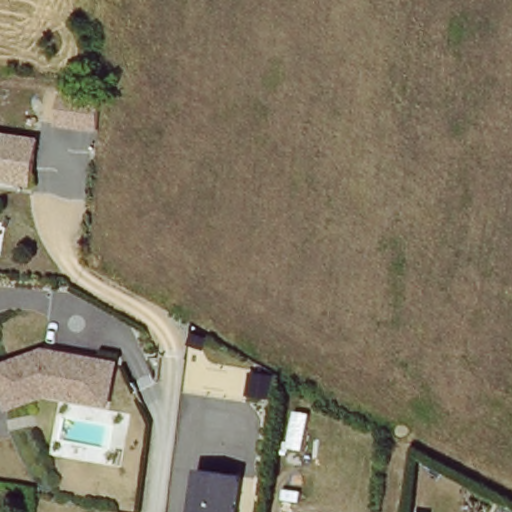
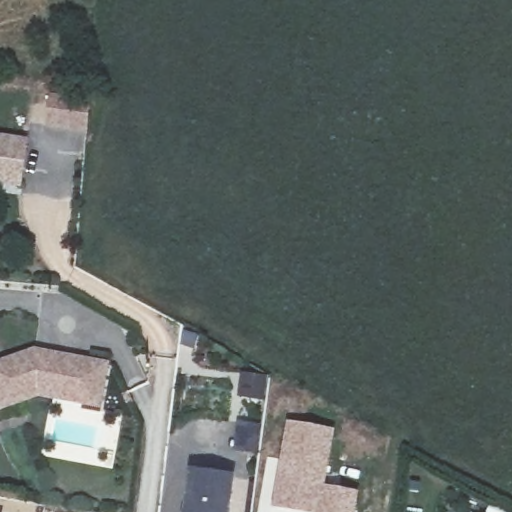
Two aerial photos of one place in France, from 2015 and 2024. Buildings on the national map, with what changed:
unchanged [(25,173),(23,183),(0,179),(0,134),(30,139),(25,173)]
unchanged [(42,398),(2,413),(0,407),(0,368),(38,354),(95,365),(110,368),(102,409),(42,398)]
new [(238,371),(270,375),(266,401),(234,397),(238,371)]
new [(285,420),(334,429),(325,484),(359,491),(355,512),(287,512),(268,509),(285,420)]
new [(262,425),(259,454),(234,452),(238,422),(262,425)]
unchanged [(201,476),(242,481),(237,512),(196,512),(201,476)]
new [(405,507),(423,509),(422,512),(404,512),(405,507)]

